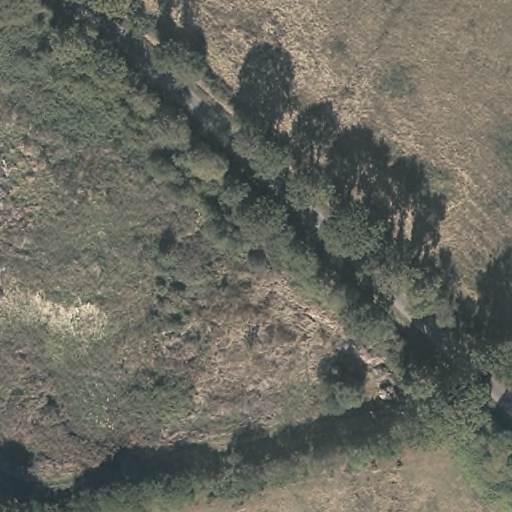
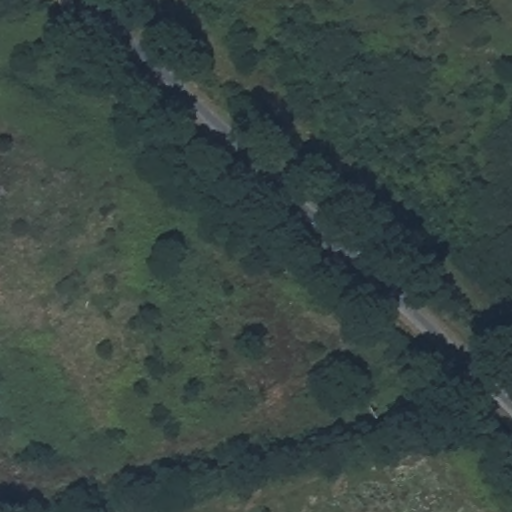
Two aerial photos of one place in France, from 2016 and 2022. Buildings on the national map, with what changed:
[]

